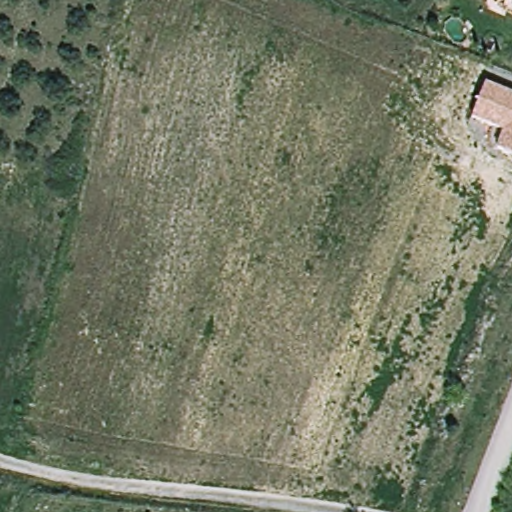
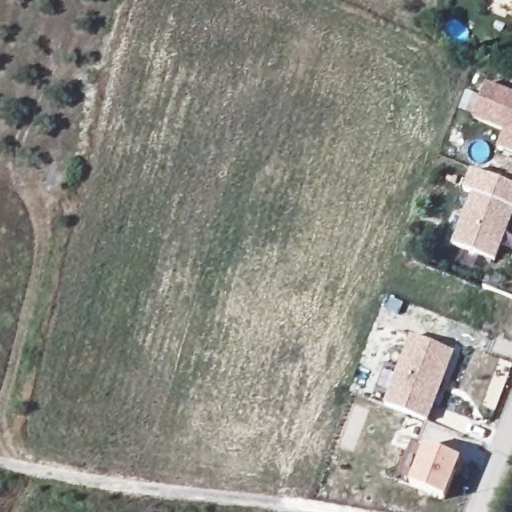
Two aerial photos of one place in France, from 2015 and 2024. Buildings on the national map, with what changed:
unchanged [(484,84),(512,94),(512,151),(498,146),(504,131),(473,117),(484,84)]
new [(462,190),(471,170),(501,182),(512,165),(512,217),(495,262),(452,245),(473,194),(462,190)]
new [(456,353),(429,422),(383,405),(411,336),(456,353)]
new [(462,461),(446,500),(410,486),(426,447),(462,461)]

